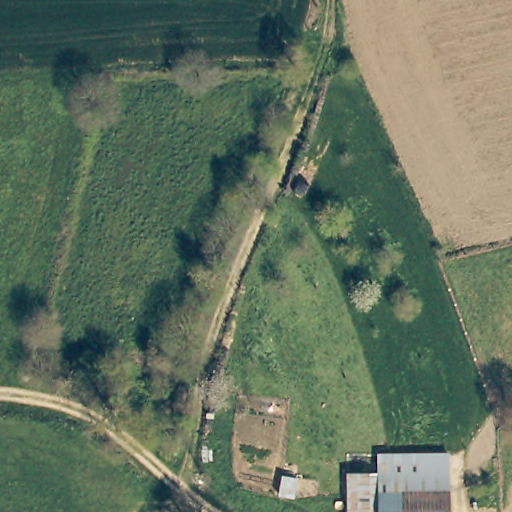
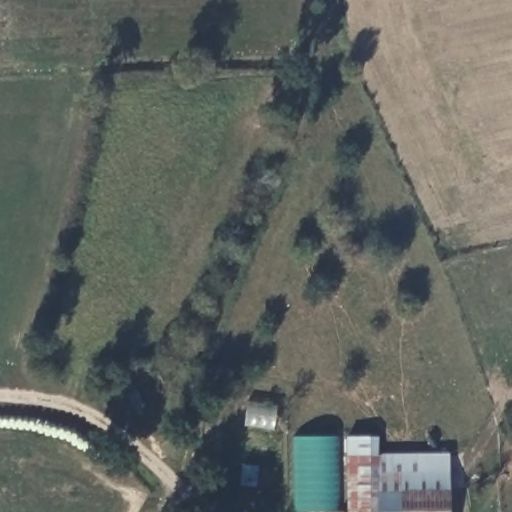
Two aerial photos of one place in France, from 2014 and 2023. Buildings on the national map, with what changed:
new [(340,511),(296,511),(295,436),(340,435),(340,511)]
unchanged [(449,453),(451,490),(452,512),(348,512),(347,474),(345,457),(378,455),(449,453)]

